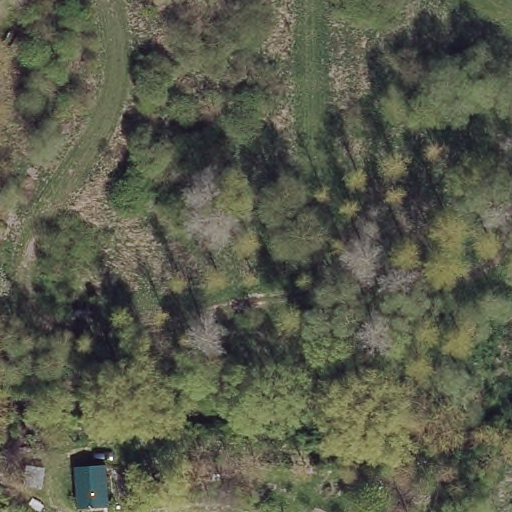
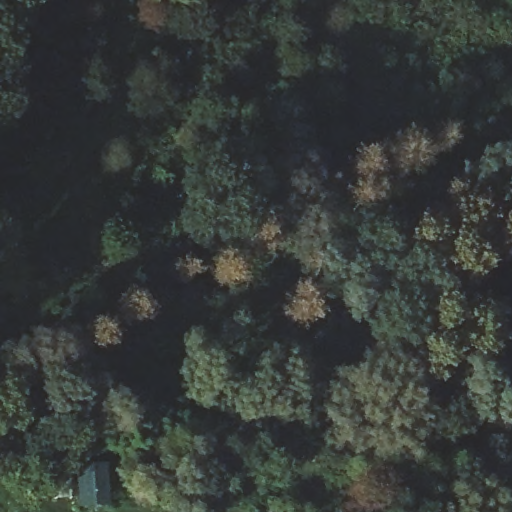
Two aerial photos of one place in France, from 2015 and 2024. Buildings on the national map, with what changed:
unchanged [(77,508),(73,467),(107,464),(110,505),(77,508)]

